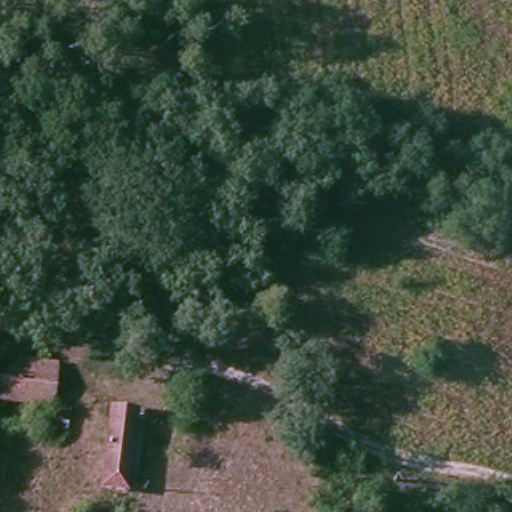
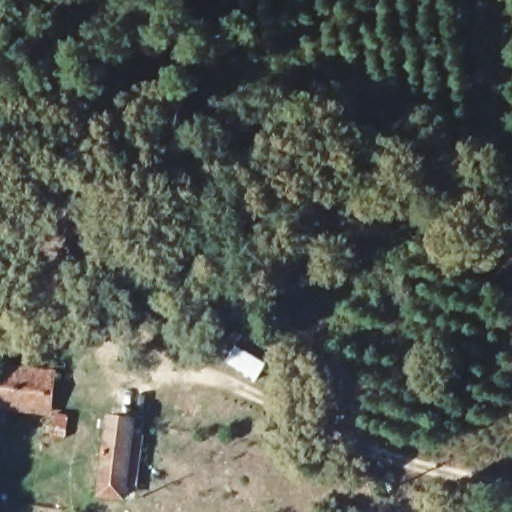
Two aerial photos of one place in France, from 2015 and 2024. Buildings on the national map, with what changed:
unchanged [(47,415),(0,412),(0,377),(49,381),(47,415)]
unchanged [(105,424),(131,428),(117,498),(91,493),(105,424)]

